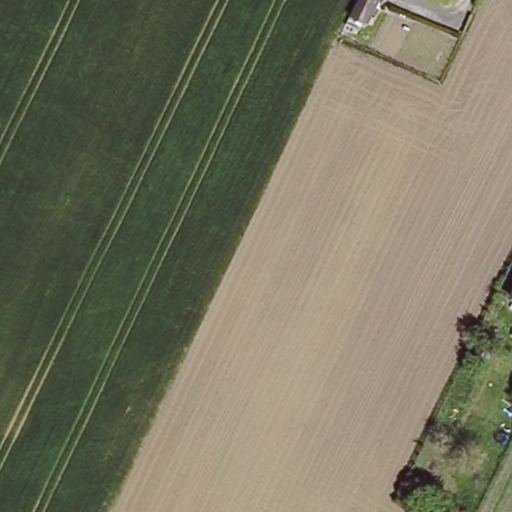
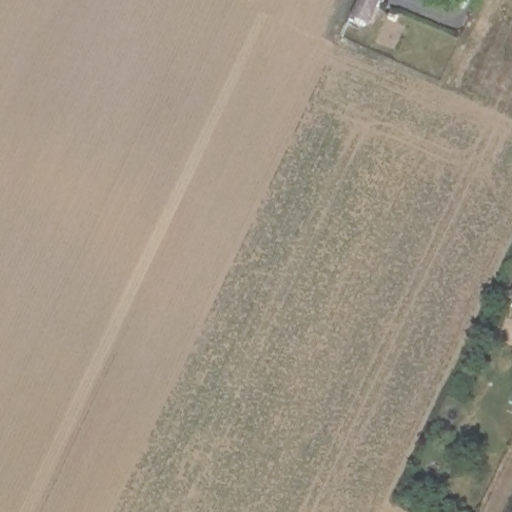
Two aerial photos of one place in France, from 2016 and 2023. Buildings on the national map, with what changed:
unchanged [(369,0),(357,26),(342,18),(350,0),(369,0)]
unchanged [(512,288),(512,304),(506,301),(512,288)]

